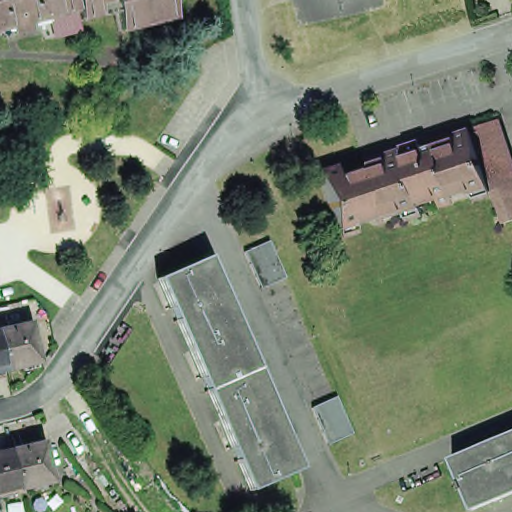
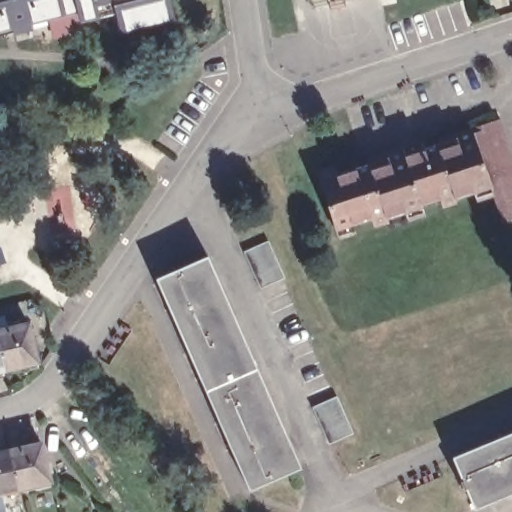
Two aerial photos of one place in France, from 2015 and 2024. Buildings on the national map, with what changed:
unchanged [(0,31),(0,0),(176,0),(180,15),(126,30),(119,6),(103,11),(104,14),(85,19),(82,9),(34,22),(35,29),(19,33),(17,26),(0,31)]
unchanged [(444,200),(443,197),(424,203),(408,153),(475,130),(474,128),(503,118),(507,133),(512,146),(512,148),(512,219),(505,221),(500,208),(496,194),(493,185),(444,200)]
unchanged [(425,205),(376,221),(375,217),(339,228),(322,175),(337,169),(339,173),(407,151),(408,153),(424,203),(425,205)]
unchanged [(285,279),(261,289),(245,253),(270,242),(285,279)]
unchanged [(159,275),(210,253),(239,322),(189,344),(159,275)]
unchanged [(189,344),(239,322),(270,392),(219,414),(189,344)]
unchanged [(7,327),(9,331),(28,326),(38,363),(34,364),(6,371),(0,349),(0,330),(7,327)]
unchanged [(6,371),(0,372),(0,349),(6,371)]
unchanged [(219,414),(270,392),(300,462),(249,484),(219,414)]
unchanged [(338,399),(353,434),(329,445),(313,409),(338,399)]
unchanged [(469,482),(465,484),(463,476),(466,475),(457,452),(512,428),(512,488),(478,503),(469,482)]
unchanged [(18,485),(9,447),(8,444),(21,441),(22,444),(43,439),(51,478),(18,485)]
unchanged [(9,447),(18,485),(0,489),(0,449),(9,447)]
unchanged [(1,511),(0,512),(0,508),(1,511)]

